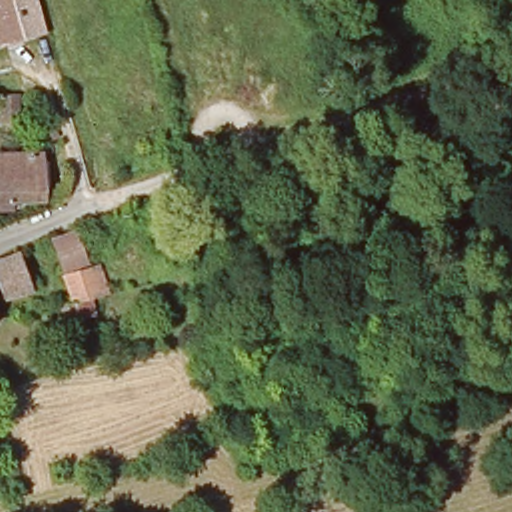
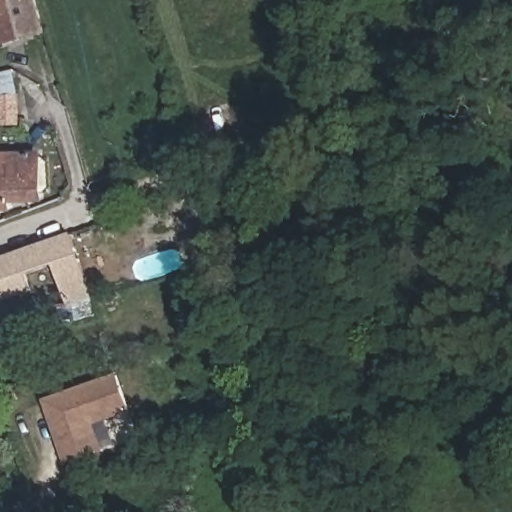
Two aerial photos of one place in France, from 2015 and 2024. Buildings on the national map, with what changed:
unchanged [(49,37),(0,49),(0,0),(38,0),(49,37)]
unchanged [(22,90),(24,116),(2,117),(0,106),(0,90),(22,90)]
unchanged [(37,198),(10,200),(10,185),(0,185),(0,157),(36,156),(37,198)]
unchanged [(10,185),(10,200),(9,216),(0,216),(0,185),(10,185)]
unchanged [(89,256),(66,267),(55,238),(79,229),(89,256)]
unchanged [(28,293),(0,304),(0,262),(15,256),(28,293)]
unchanged [(71,315),(64,301),(57,303),(50,281),(71,274),(95,266),(100,278),(107,278),(111,289),(87,295),(91,308),(71,315)]
unchanged [(1,320),(0,320),(0,317),(1,320)]
new [(128,412),(94,423),(103,451),(68,463),(59,435),(63,428),(59,414),(53,417),(48,402),(117,379),(128,412)]

